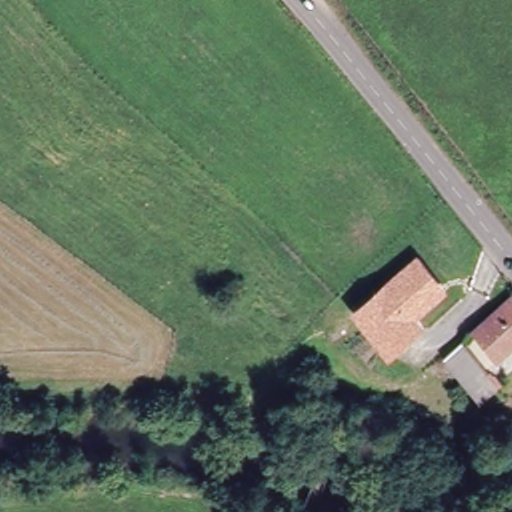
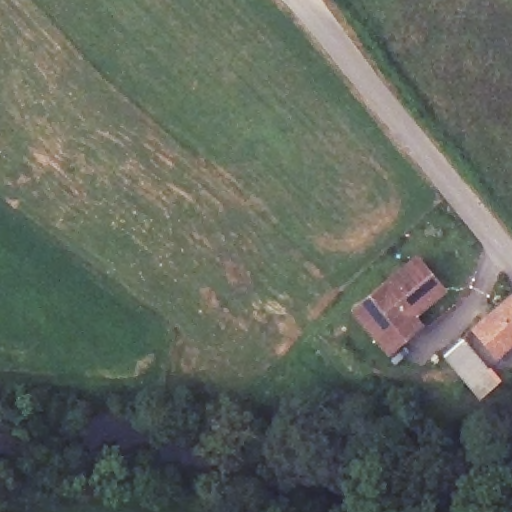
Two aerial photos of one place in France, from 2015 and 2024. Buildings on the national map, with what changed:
unchanged [(417,260),(438,287),(424,297),(427,302),(410,314),(417,325),(397,342),(380,319),(370,325),(356,307),(417,260)]
unchanged [(497,361),(475,334),(512,304),(512,348),(497,361)]
unchanged [(462,345),(491,377),(502,383),(480,401),(444,363),(452,355),(462,345)]

